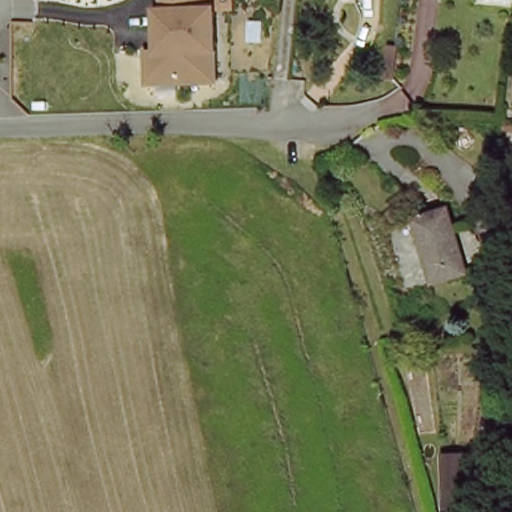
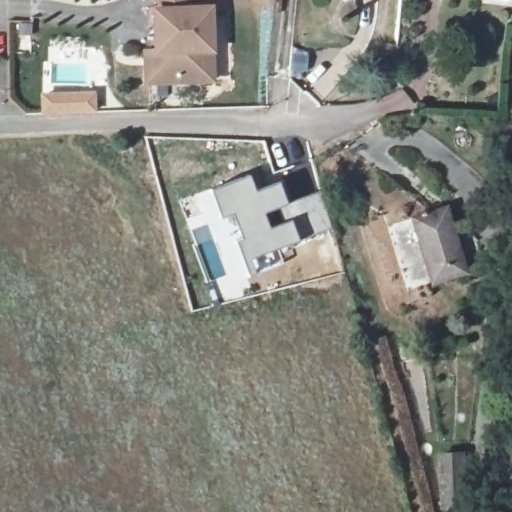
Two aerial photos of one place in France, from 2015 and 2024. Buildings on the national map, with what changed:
new [(211,10),(160,12),(158,0),(211,0),(211,10)]
unchanged [(211,10),(213,86),(146,87),(145,54),(156,53),(154,12),(211,10)]
new [(250,177),(256,194),(279,185),(288,205),(318,192),(333,230),(297,242),(250,260),(255,273),(249,276),(236,242),(243,240),(233,215),(221,220),(210,191),(250,177)]
unchanged [(470,277),(436,287),(415,219),(450,209),(470,277)]
unchanged [(495,496),(496,443),(512,444),(512,496),(511,496),(495,496)]

